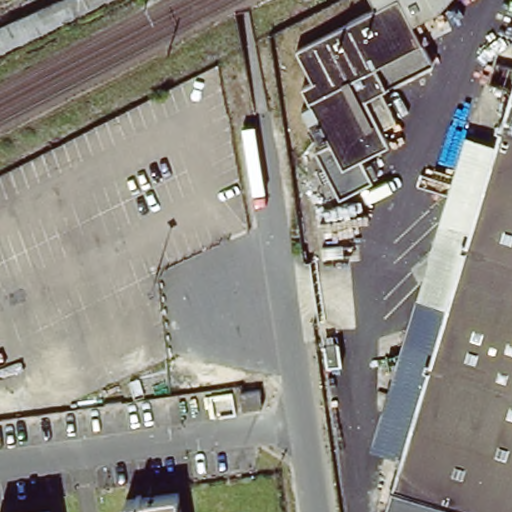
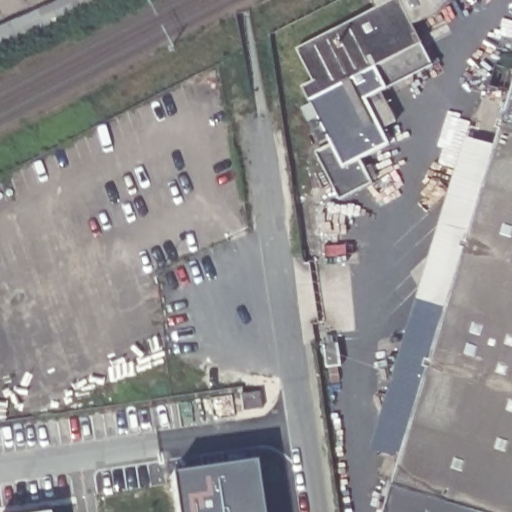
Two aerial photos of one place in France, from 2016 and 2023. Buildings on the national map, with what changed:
unchanged [(0,50),(0,26),(58,0),(98,0),(0,50)]
unchanged [(418,26),(432,64),(365,100),(388,144),(358,157),(373,182),(340,201),(315,158),(321,145),(295,89),(313,82),(296,49),(378,13),(371,0),(447,0),(418,26)]
unchanged [(498,141),(512,95),(512,512),(386,512),(442,325),(498,141)]
unchanged [(442,325),(428,322),(433,303),(415,297),(465,138),(498,141),(442,325)]
unchanged [(251,406),(250,389),(268,386),(270,402),(251,406)]
new [(259,463),(266,512),(179,512),(174,477),(259,463)]
unchanged [(174,496),(175,503),(177,512),(123,512),(122,503),(174,496)]

